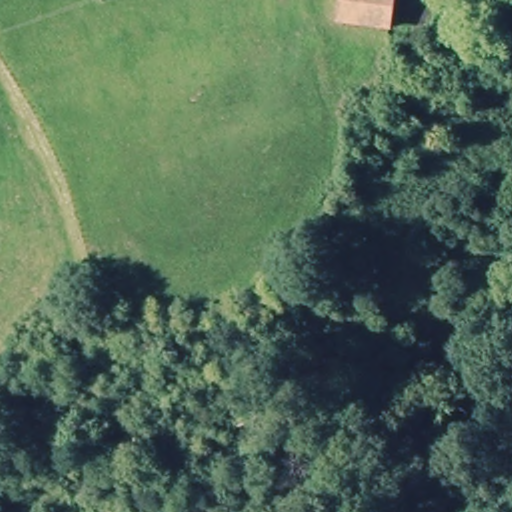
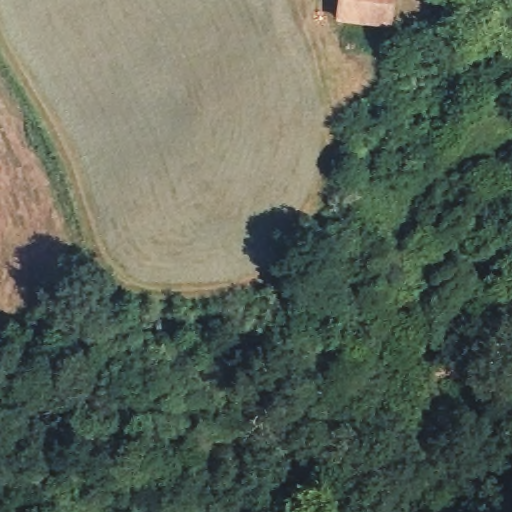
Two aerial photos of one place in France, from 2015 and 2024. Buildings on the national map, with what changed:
unchanged [(337,20),(342,0),(397,0),(387,36),(337,20)]

